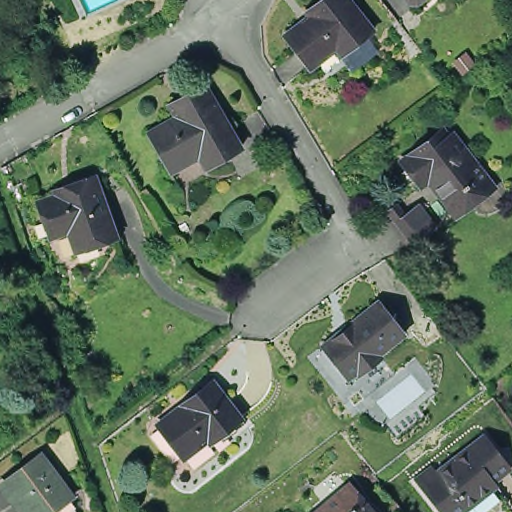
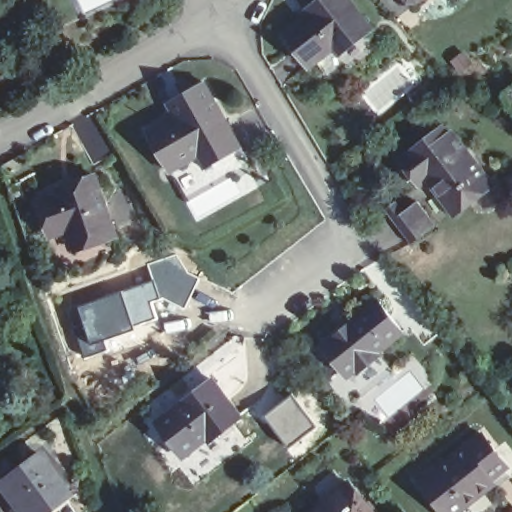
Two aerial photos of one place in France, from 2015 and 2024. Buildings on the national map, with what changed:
unchanged [(330,49),(305,70),(278,40),(304,19),(300,14),(317,0),(345,0),(367,25),(347,42),(334,53),(330,49)]
unchanged [(162,161),(147,129),(176,114),(170,100),(185,92),(208,81),(237,145),(202,164),(196,152),(167,168),(162,161)]
unchanged [(475,192),(451,212),(422,177),(414,184),(394,159),(435,124),(443,133),(449,129),(485,173),(490,179),(475,192)]
unchanged [(96,166),(118,221),(116,222),(115,221),(77,238),(72,225),(59,231),(46,196),(42,198),(41,195),(58,188),(57,183),(75,176),(96,166)]
unchanged [(418,247),(409,236),(400,225),(401,223),(392,214),(402,206),(410,215),(422,205),(433,216),(442,227),(418,247)]
new [(177,251),(189,270),(201,277),(185,309),(162,299),(160,300),(152,279),(145,262),(177,251)]
new [(84,331),(76,306),(152,279),(160,300),(153,303),(158,319),(104,340),(107,351),(82,358),(75,335),(84,331)]
unchanged [(374,347),(377,350),(355,369),(352,366),(344,373),(319,342),(373,294),(400,324),(374,347)]
unchanged [(18,323),(30,330),(22,342),(17,348),(6,340),(10,334),(18,323)]
unchanged [(225,428),(223,426),(186,459),(158,427),(182,405),(182,404),(212,377),(242,412),(225,428)]
unchanged [(470,507),(473,511),(472,512),(435,512),(420,493),(415,487),(431,474),(436,480),(482,440),(510,473),(470,507)]
unchanged [(37,460),(63,497),(59,500),(67,512),(13,512),(0,494),(0,486),(37,460)]
unchanged [(306,512),(353,475),(382,512),(306,512)]

